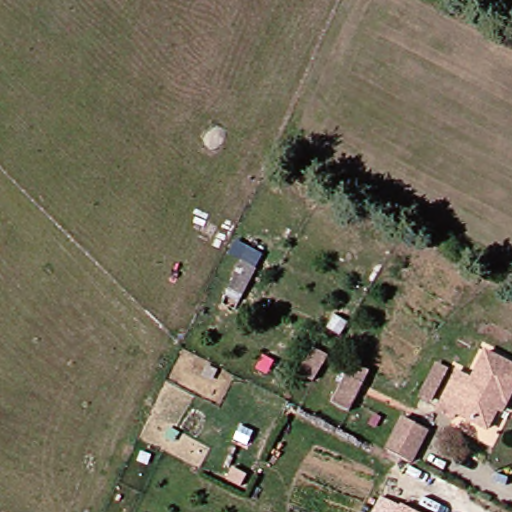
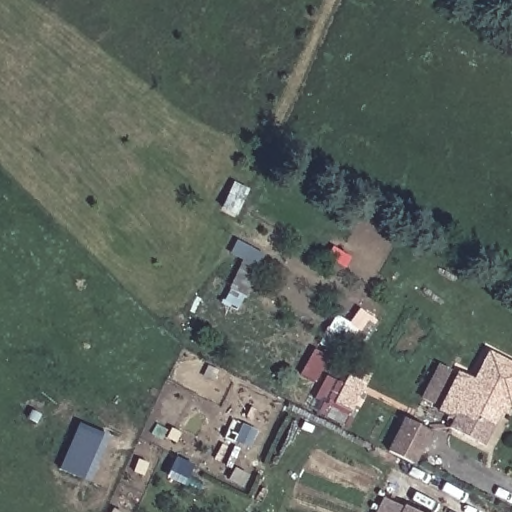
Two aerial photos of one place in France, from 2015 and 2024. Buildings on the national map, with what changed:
unchanged [(468,412),(464,419),(449,411),(472,371),(486,381),(499,356),(512,363),(512,403),(497,429),(468,412)]
unchanged [(459,368),(440,401),(433,397),(453,364),(459,368)]
unchanged [(334,402),(349,375),(354,365),(370,373),(364,383),(350,411),(334,402)]
unchanged [(428,431),(411,463),(387,451),(404,418),(428,431)]
new [(90,481),(59,468),(78,422),(109,436),(90,481)]
unchanged [(376,512),(386,494),(414,506),(411,512),(376,512)]
unchanged [(426,512),(411,512),(414,506),(426,512)]

